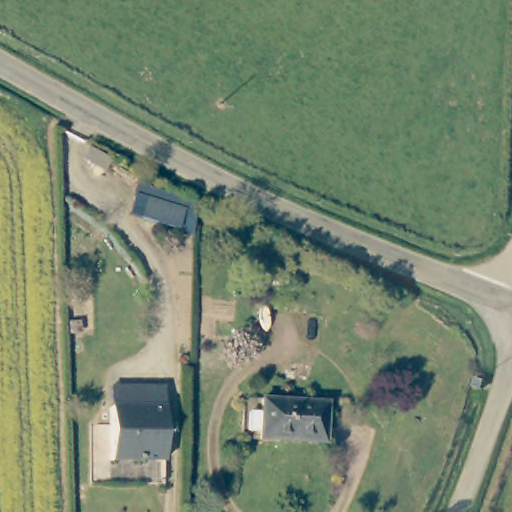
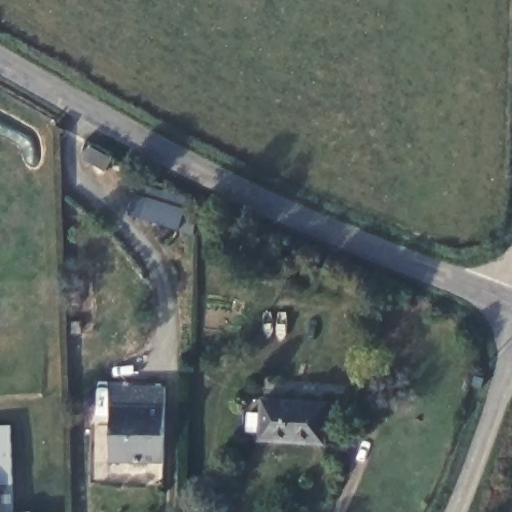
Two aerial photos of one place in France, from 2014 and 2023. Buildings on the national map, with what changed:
unchanged [(188,210),(179,235),(129,215),(140,190),(188,210)]
unchanged [(167,463),(111,463),(112,407),(112,387),(147,387),(167,387),(167,463)]
unchanged [(332,407),(332,424),(331,448),(263,445),(263,436),(255,436),(255,420),(266,419),(267,404),(332,407)]
new [(13,483),(0,483),(0,426),(11,425),(13,483)]
new [(1,512),(0,512),(0,483),(1,512)]

